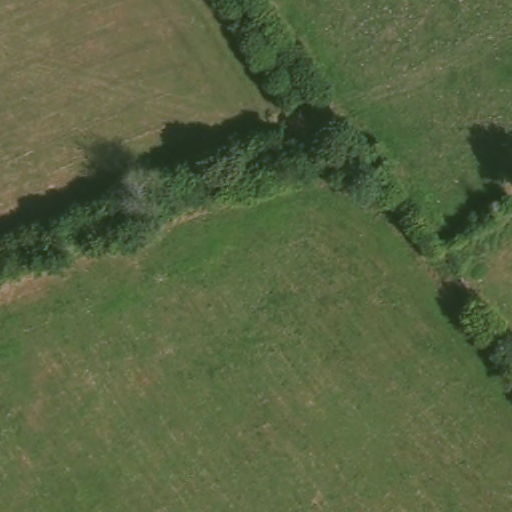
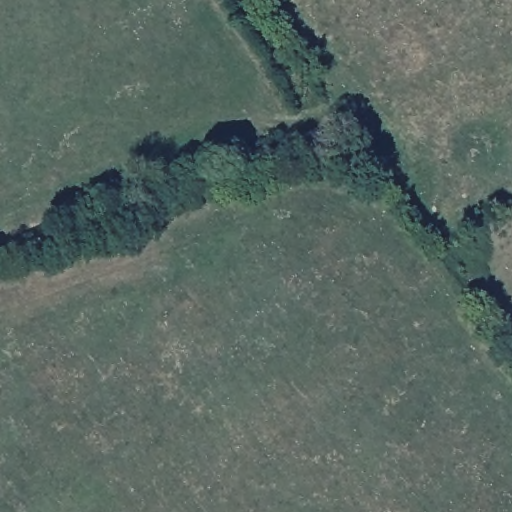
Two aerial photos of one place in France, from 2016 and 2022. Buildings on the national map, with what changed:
[]

